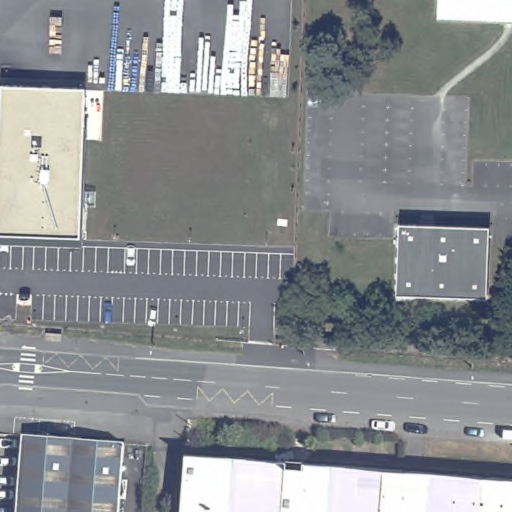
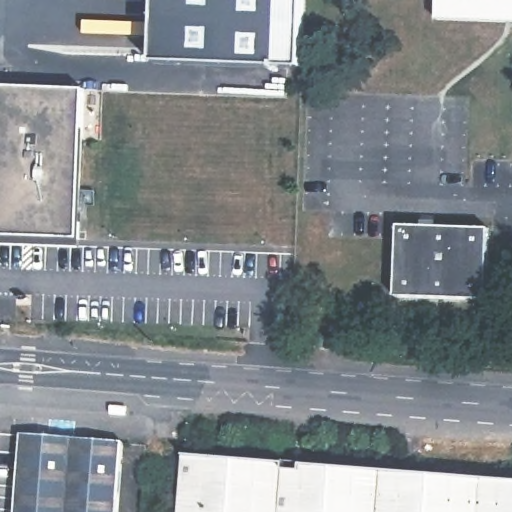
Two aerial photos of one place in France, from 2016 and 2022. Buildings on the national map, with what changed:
new [(152,64),(155,0),(304,0),(301,70),(152,64)]
unchanged [(438,0),(512,0),(512,25),(437,22),(438,0)]
unchanged [(83,90),(78,238),(0,236),(0,87),(83,90)]
unchanged [(395,227),(485,231),(482,301),(393,298),(395,227)]
unchanged [(314,338),(335,340),(334,351),(313,350),(314,338)]
unchanged [(24,441),(123,449),(118,512),(19,512),(24,441)]
unchanged [(191,459),(512,484),(512,512),(187,512),(191,459)]

